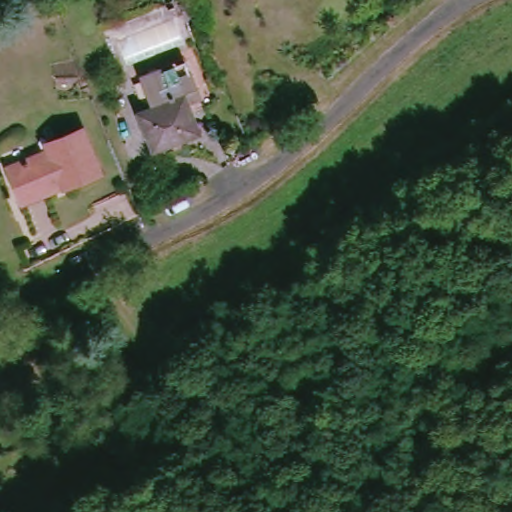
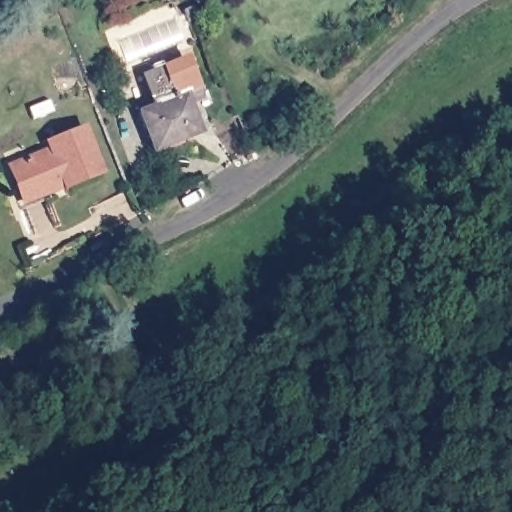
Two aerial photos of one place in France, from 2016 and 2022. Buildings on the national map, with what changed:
unchanged [(202,99),(190,101),(199,134),(152,149),(140,109),(152,106),(143,75),(191,61),(202,99)]
unchanged [(79,126),(96,168),(64,183),(62,179),(20,195),(7,163),(50,146),(47,139),(79,126)]

